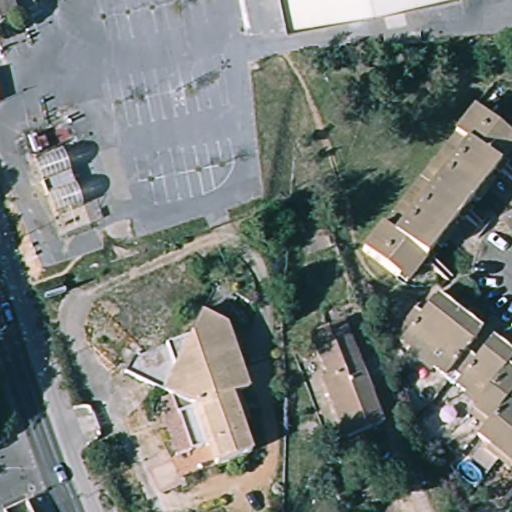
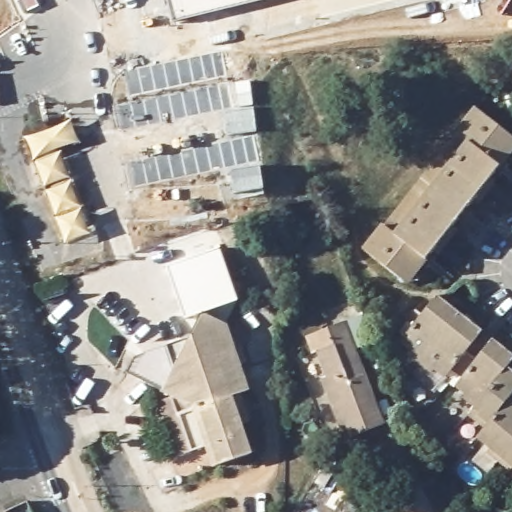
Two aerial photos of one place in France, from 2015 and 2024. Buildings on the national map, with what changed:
new [(168,0),(261,0),(173,22),(168,0)]
unchanged [(273,0),(430,0),(279,27),(273,0)]
unchanged [(472,112),(474,109),(512,141),(512,145),(512,155),(507,162),(503,157),(496,167),(499,171),(496,174),(472,112)]
unchanged [(471,207),(466,202),(458,212),(462,217),(430,255),(426,252),(419,261),(424,265),(412,278),(404,272),(399,277),(364,247),(383,224),(387,224),(454,140),(453,136),(472,112),(496,174),(471,207)]
new [(167,266),(220,249),(238,302),(186,320),(167,266)]
unchanged [(416,362),(394,346),(401,337),(396,332),(410,315),(415,320),(434,296),(456,312),(416,362)]
unchanged [(481,332),(466,350),(469,353),(452,376),(447,372),(441,382),(416,362),(456,312),(481,332)]
unchanged [(204,411),(195,386),(164,396),(131,378),(140,358),(194,338),(204,317),(230,326),(250,394),(233,400),(204,411)]
unchanged [(383,423),(341,437),(321,377),(326,373),(319,348),(335,343),(329,325),(347,320),(383,423)]
unchanged [(479,360),(494,342),(512,358),(512,366),(476,411),(454,392),(461,382),(452,376),(469,353),(479,360)]
unchanged [(489,427),(474,415),(476,411),(512,366),(512,398),(489,427)]
unchanged [(253,457),(201,474),(176,402),(164,396),(195,386),(204,411),(233,400),(253,457)]
unchanged [(506,459),(480,439),(489,427),(512,398),(512,451),(506,459)]
unchanged [(506,459),(512,451),(512,464),(506,459)]

